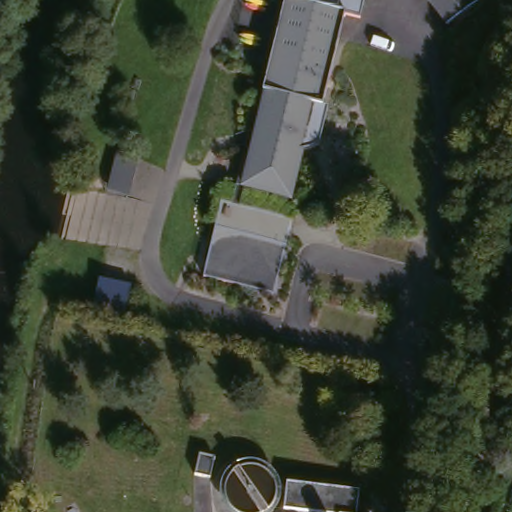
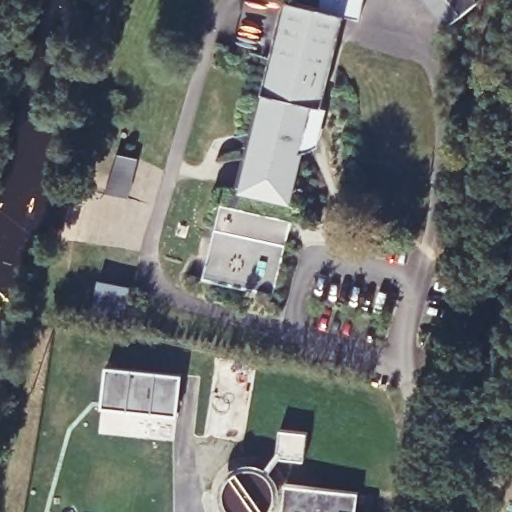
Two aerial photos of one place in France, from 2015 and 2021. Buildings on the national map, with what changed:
unchanged [(304,156),(292,205),(245,193),(257,148),(262,146),(260,135),(269,98),(266,96),(267,89),(274,63),(289,4),(323,13),(326,0),(369,0),(364,24),(348,20),(326,106),(325,111),(330,113),(321,150),(304,156)]
unchanged [(475,11),(447,31),(423,0),(467,0),(474,9),(475,11)]
unchanged [(141,158),(132,200),(106,193),(113,154),(141,158)]
unchanged [(289,220),(271,295),(200,278),(217,209),(218,203),(289,220)]
unchanged [(131,287),(126,315),(94,309),(99,280),(131,287)]
new [(109,366),(181,376),(174,440),(105,431),(109,366)]
demolished [(233,483),(234,482),(236,481),(237,480),(239,479),(240,478),(242,478),(244,477),(246,477),(247,477),(249,476),(251,476),(253,477),(254,477),(256,477),(258,478),(260,478),(261,479),(263,480),(264,481),(266,482),(267,483),(268,484),(270,486),(271,487),(272,489),(273,490),(273,492),(274,493),(275,495),(275,497),(275,499),(275,500),(275,502),(275,504),(275,506),(275,508),(274,509),(274,511),(273,512),(226,512),(226,511),(225,509),(225,507),(224,505),(224,504),(224,502),(224,500),(225,498),(225,497),(225,495),(226,493),(226,491),(227,490),(228,488),(229,487),(230,485),(232,484),(233,483)]
unchanged [(286,492),(359,503),(357,512),(283,512),(286,492)]

